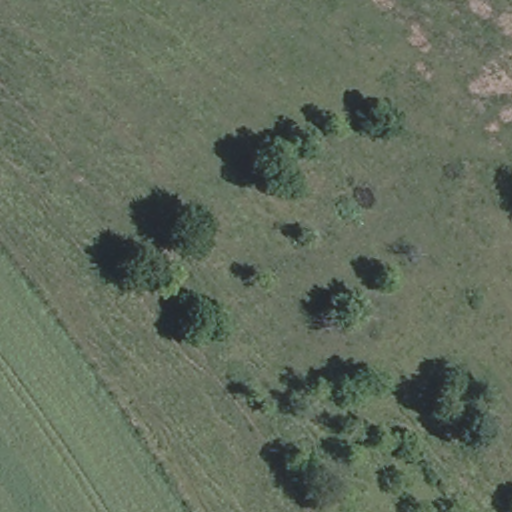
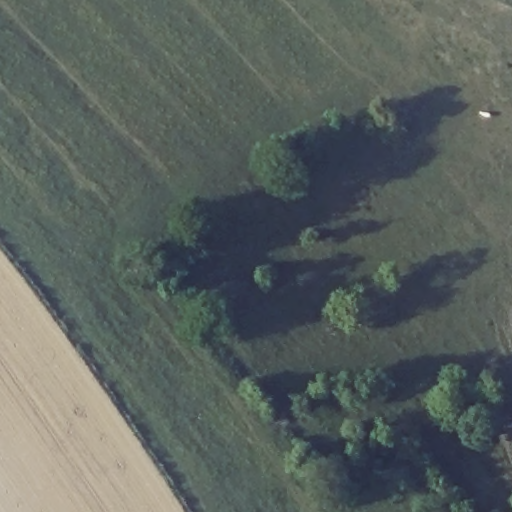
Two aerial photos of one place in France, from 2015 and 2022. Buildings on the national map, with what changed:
[]

